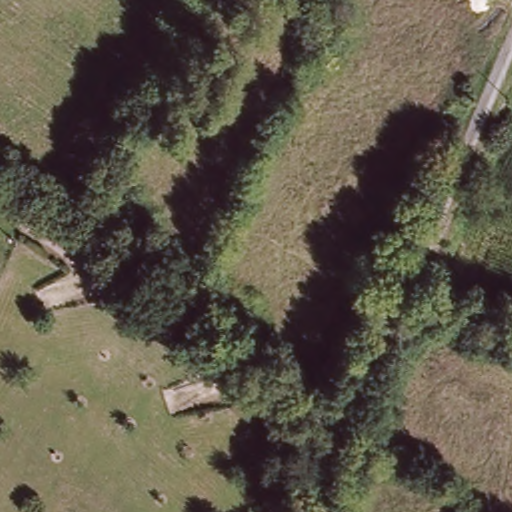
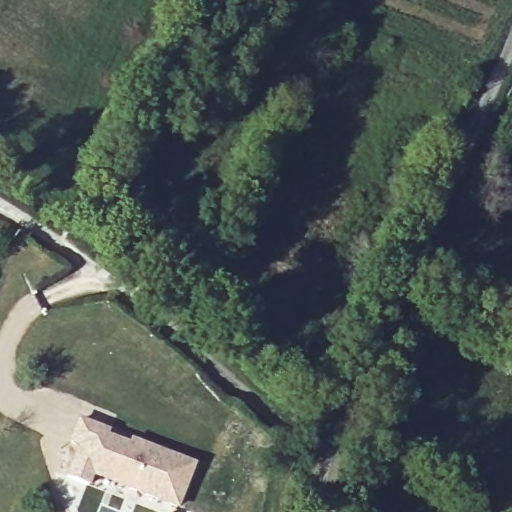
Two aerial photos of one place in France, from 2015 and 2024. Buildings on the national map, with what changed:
new [(79,445),(70,441),(79,421),(107,433),(106,438),(137,450),(139,446),(192,467),(175,508),(133,490),(128,502),(66,477),(79,445)]

